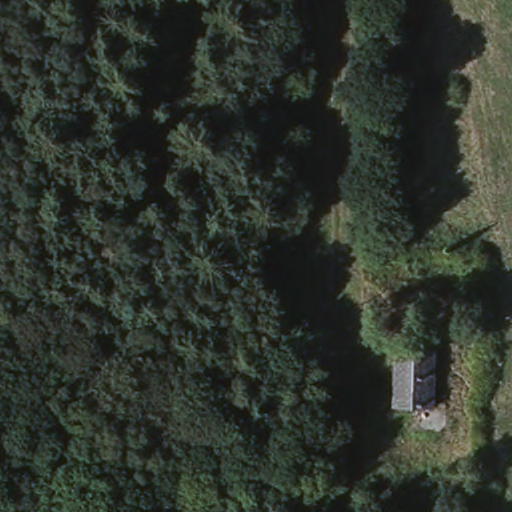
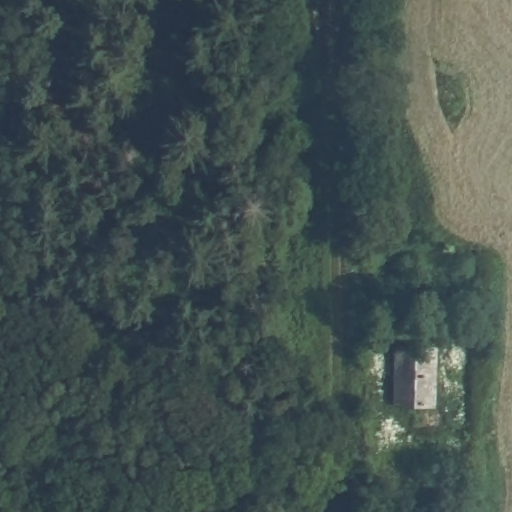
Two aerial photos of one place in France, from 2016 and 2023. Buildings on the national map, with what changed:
unchanged [(403,405),(396,406),(396,344),(435,346),(435,405),(424,407),(425,424),(404,424),(403,405)]

